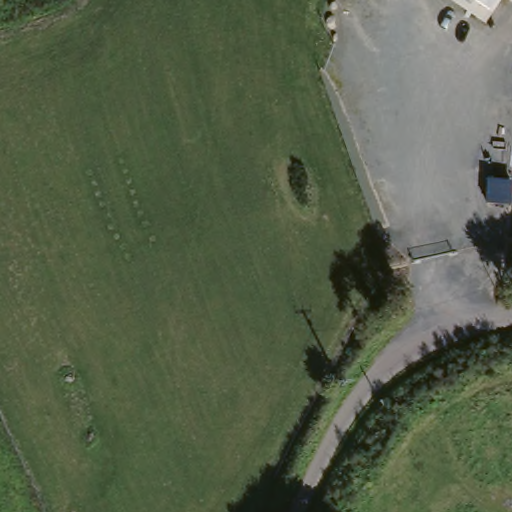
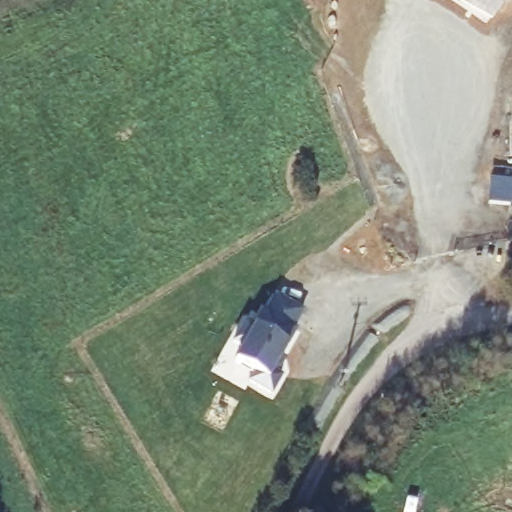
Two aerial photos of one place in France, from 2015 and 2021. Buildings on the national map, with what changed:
unchanged [(476,0),(498,0),(492,10),(476,0)]
new [(304,308),(294,327),(298,330),(291,342),(279,364),(283,365),(279,373),(283,376),(272,396),(246,381),(253,371),(234,362),(242,348),(234,345),(246,321),(256,325),(264,309),(267,311),(276,294),(304,308)]

